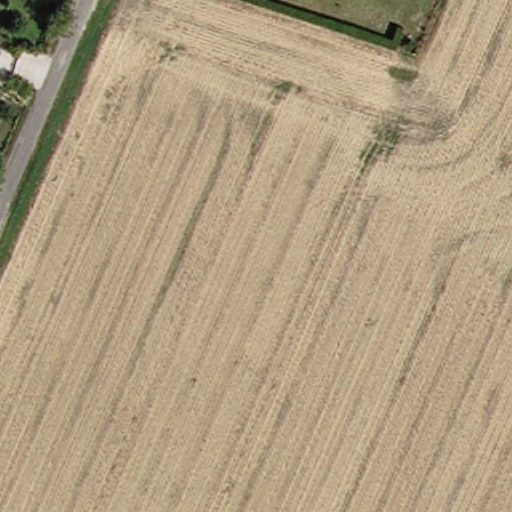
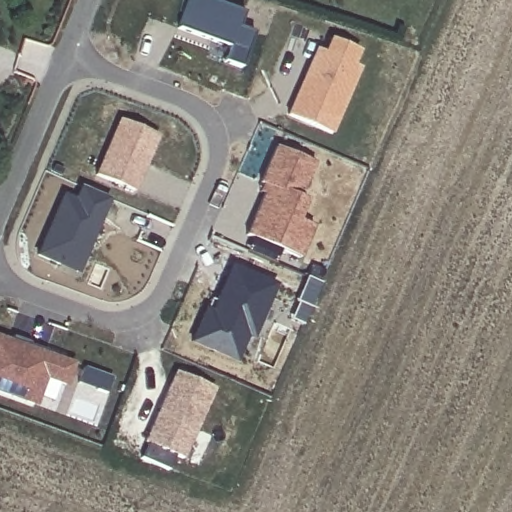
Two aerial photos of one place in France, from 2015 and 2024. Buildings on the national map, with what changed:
new [(228,46),(178,28),(188,0),(209,0),(244,12),(238,27),(253,32),(240,67),(223,61),(228,46)]
new [(315,48),(323,51),(328,37),(360,51),(354,65),(359,67),(331,135),(286,115),(315,48)]
new [(95,174),(119,119),(159,136),(135,191),(95,174)]
new [(253,239),(246,236),(263,194),(259,192),(263,184),(259,182),(275,146),(314,162),(300,197),(306,200),(298,221),(313,227),(300,258),(280,252),(273,264),(245,252),(253,239)]
new [(37,256),(65,194),(75,198),(80,187),(111,199),(79,274),(37,256)]
new [(207,307),(213,310),(231,266),(278,285),(254,340),(247,337),(237,363),(190,343),(207,307)]
new [(290,320),(297,303),(295,302),(305,277),(320,284),(302,326),(290,320)]
new [(76,363),(67,387),(59,383),(52,401),(39,397),(36,407),(0,394),(0,335),(76,363)]
new [(77,384),(83,367),(112,377),(106,394),(77,384)]
new [(147,445),(144,443),(174,372),(215,389),(183,460),(174,456),(168,470),(142,458),(147,445)]

